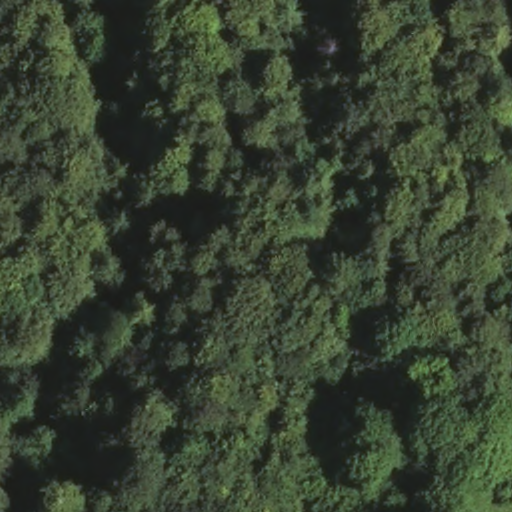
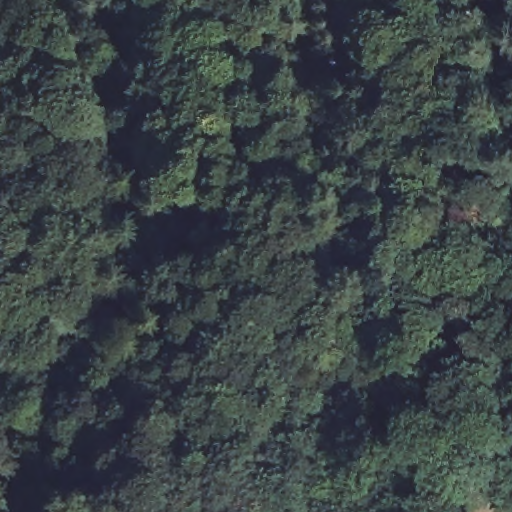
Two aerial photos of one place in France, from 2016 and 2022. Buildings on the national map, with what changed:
[]

